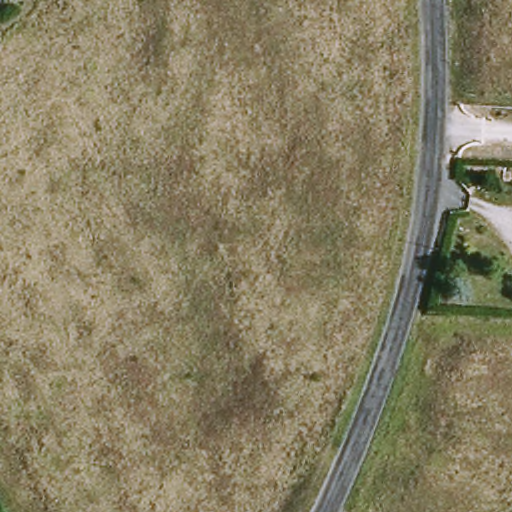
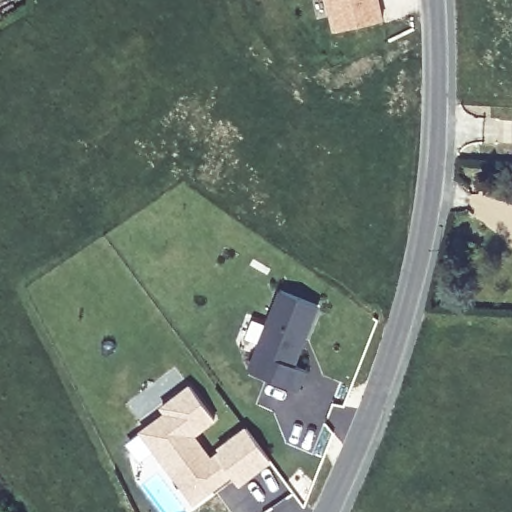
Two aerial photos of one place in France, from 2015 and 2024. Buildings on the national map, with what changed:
new [(384,19),(331,31),(324,0),(380,0),(384,19)]
new [(284,285),(323,299),(308,334),(305,341),(298,361),(309,365),(300,386),(265,373),(250,367),(260,344),(284,285)]
new [(162,411),(158,406),(188,382),(217,419),(197,435),(210,451),(244,424),(273,460),(239,487),(232,477),(192,506),(137,430),(162,411)]

